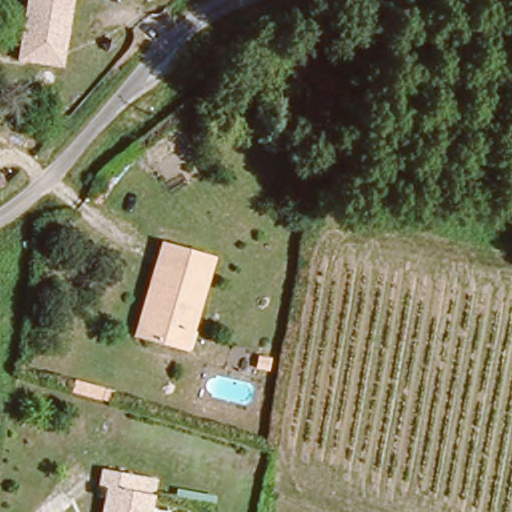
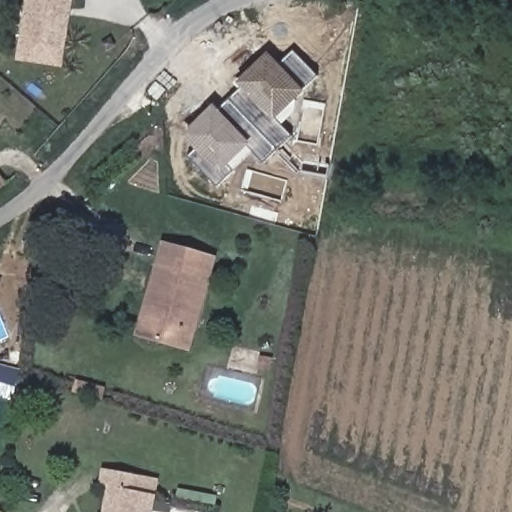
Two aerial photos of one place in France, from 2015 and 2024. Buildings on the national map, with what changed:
unchanged [(65,48),(22,40),(27,0),(71,0),(65,48)]
new [(303,90),(306,93),(297,101),(295,114),(283,126),(292,137),(263,165),(253,154),(217,188),(189,157),(195,150),(182,137),(215,105),(220,110),(242,90),(237,84),(268,54),(281,65),(293,52),(318,77),(303,90)]
unchanged [(129,329),(138,301),(150,258),(157,235),(198,246),(212,249),(206,272),(190,324),(184,345),(172,340),(129,329)]
unchanged [(100,488),(102,468),(137,476),(156,479),(152,500),(150,512),(105,512),(110,490),(100,488)]

